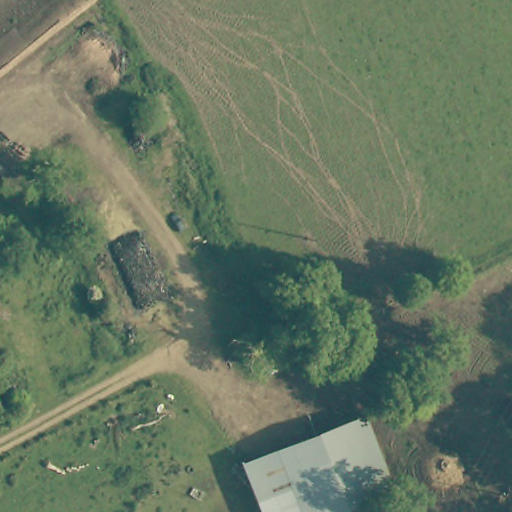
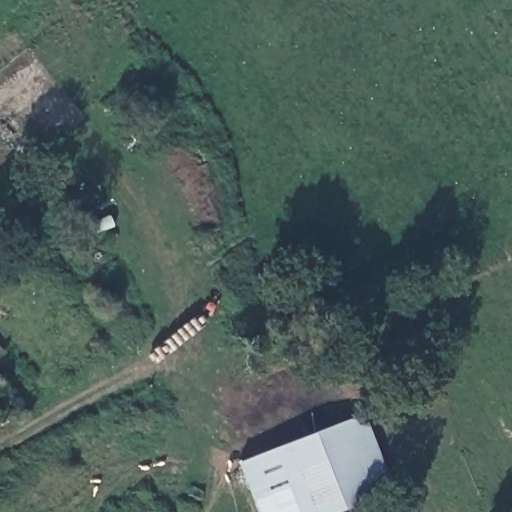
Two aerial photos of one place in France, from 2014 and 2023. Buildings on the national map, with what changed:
unchanged [(7,361),(0,366),(0,353),(7,361)]
unchanged [(356,421),(385,497),(344,512),(253,512),(236,466),(356,421)]

